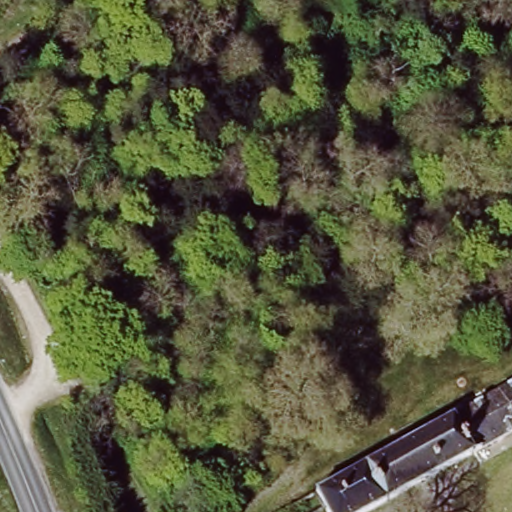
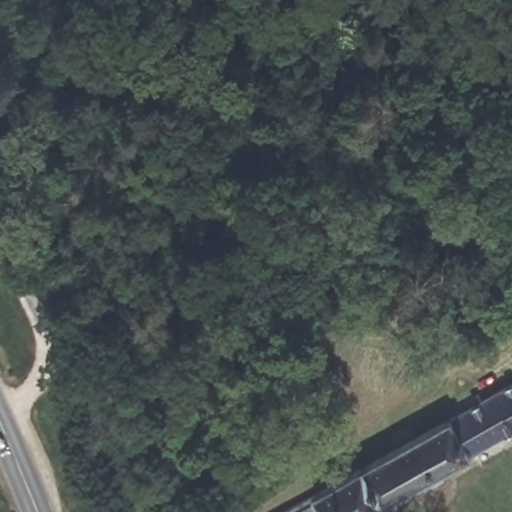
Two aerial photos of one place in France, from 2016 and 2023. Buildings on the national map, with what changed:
unchanged [(369,512),(323,512),(313,495),(452,418),(512,384),(512,433),(472,455),(369,512)]

